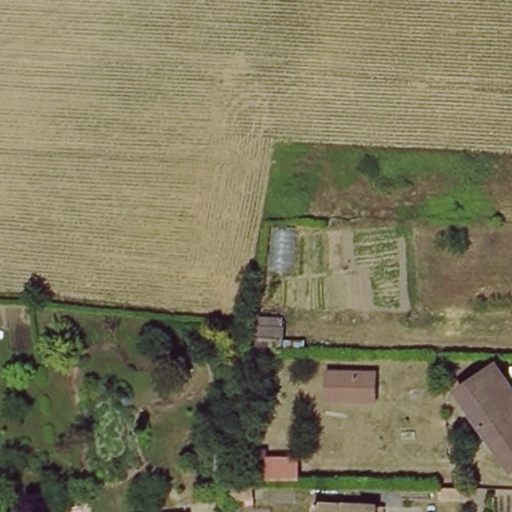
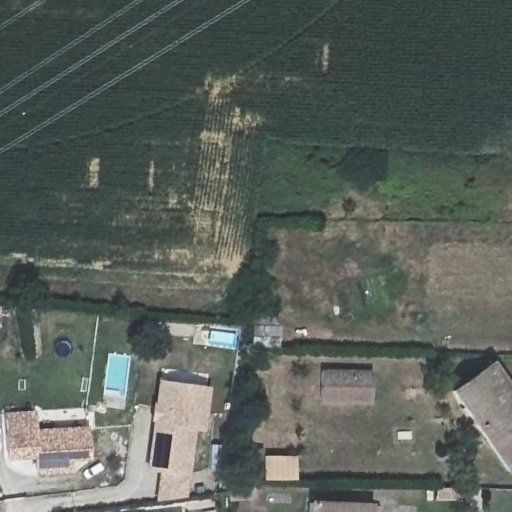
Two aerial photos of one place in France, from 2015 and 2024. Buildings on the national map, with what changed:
unchanged [(494,442),(455,392),(490,362),(512,389),(512,467),(494,442)]
unchanged [(370,378),(369,408),(319,406),(320,376),(370,378)]
new [(154,472),(160,423),(157,422),(159,410),(161,410),(164,387),(195,390),(211,392),(208,416),(207,432),(197,431),(192,477),(189,501),(164,505),(168,474),(154,472)]
new [(38,418),(40,437),(92,433),(94,463),(77,465),(78,476),(42,479),(41,462),(13,465),(9,420),(38,418)]
unchanged [(243,497),(226,500),(222,482),(241,482),(243,497)]
unchanged [(369,512),(309,512),(310,501),(370,505),(369,512)]

